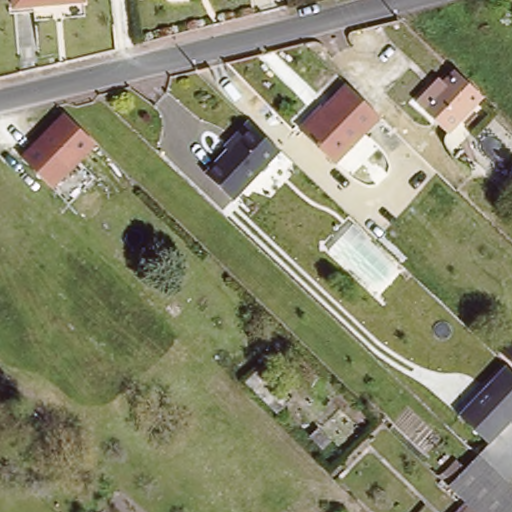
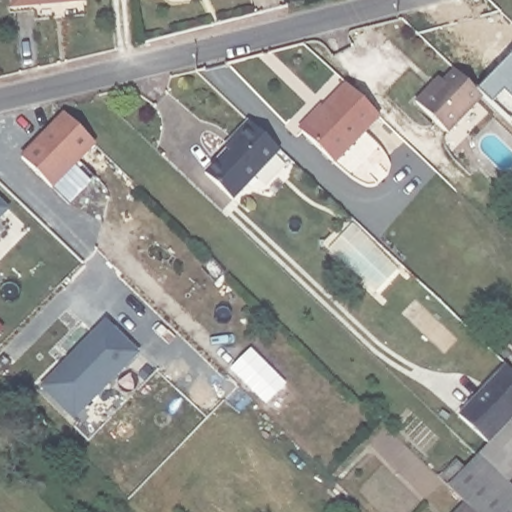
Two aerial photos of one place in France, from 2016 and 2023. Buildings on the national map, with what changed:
unchanged [(9,7),(9,0),(80,0),(9,7)]
unchanged [(456,142),(424,111),(439,96),(447,87),(451,91),(463,79),(492,106),(456,142)]
unchanged [(377,113),(332,160),(300,130),(345,82),(377,113)]
unchanged [(57,187),(27,159),(70,115),(72,117),(99,143),(57,187)]
unchanged [(227,196),(200,171),(222,147),(220,146),(228,137),(244,121),(273,148),(227,196)]
new [(0,221),(0,200),(11,210),(0,221)]
new [(75,421),(41,387),(107,322),(140,355),(75,421)]
unchanged [(487,453),(495,446),(466,418),(499,385),(512,397),(512,477),(487,453)]
unchanged [(475,508),(455,487),(462,479),(484,457),(502,475),(512,484),(512,512),(479,512),(476,508),(475,508)]
unchanged [(473,512),(476,508),(479,512),(473,512)]

